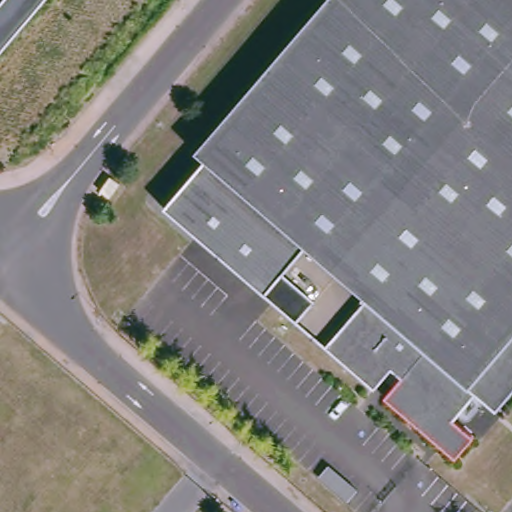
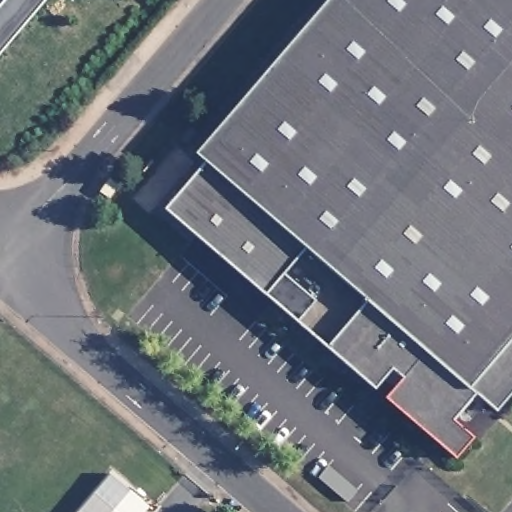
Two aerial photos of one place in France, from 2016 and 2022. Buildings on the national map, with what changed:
unchanged [(0,57),(0,10),(9,0),(49,0),(0,57)]
unchanged [(497,416),(476,398),(455,423),(475,441),(457,463),(386,401),(403,382),(395,374),(377,394),(167,210),(208,164),(197,154),(328,0),(512,0),(512,397),(497,416)]
unchanged [(127,179),(115,192),(107,186),(117,172),(127,179)]
new [(147,505),(141,512),(74,512),(108,472),(147,505)]

